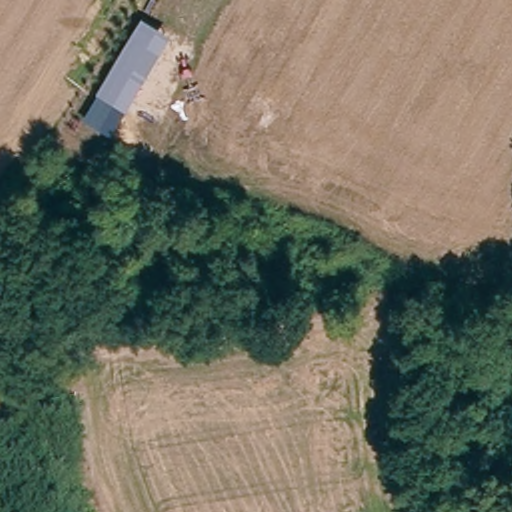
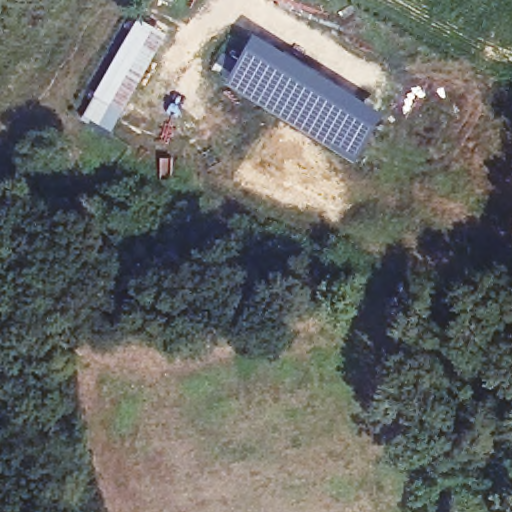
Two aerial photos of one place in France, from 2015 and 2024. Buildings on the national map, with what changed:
unchanged [(140,17),(169,32),(110,136),(82,118),(140,17)]
new [(260,33),(387,111),(358,161),(231,82),(260,33)]

